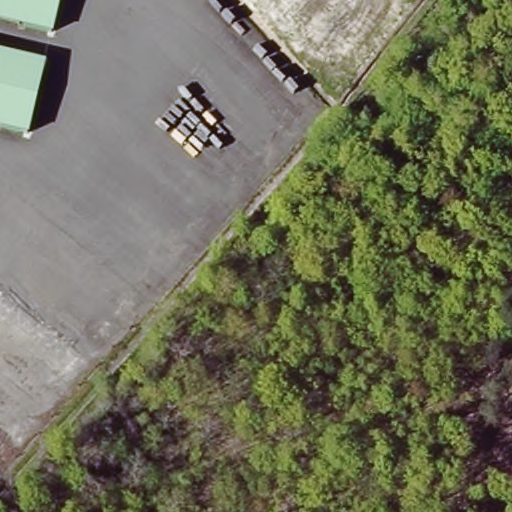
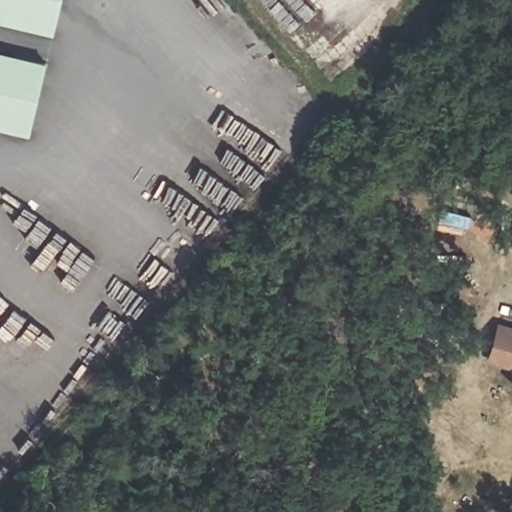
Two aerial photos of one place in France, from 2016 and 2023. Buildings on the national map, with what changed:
unchanged [(0,20),(0,0),(61,0),(53,32),(0,20)]
unchanged [(0,128),(0,51),(47,62),(29,134),(0,128)]
new [(493,354),(500,330),(512,333),(512,368),(492,362),(493,354)]

